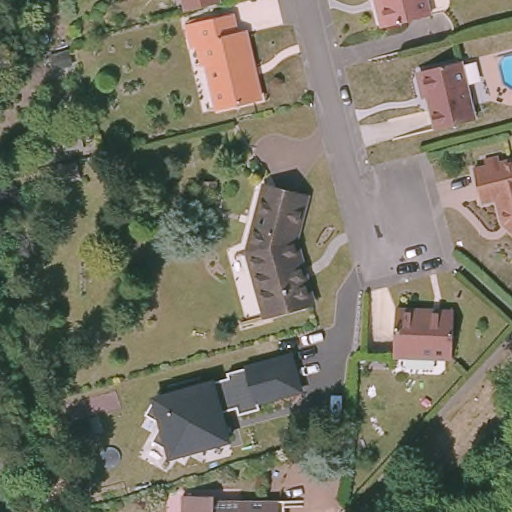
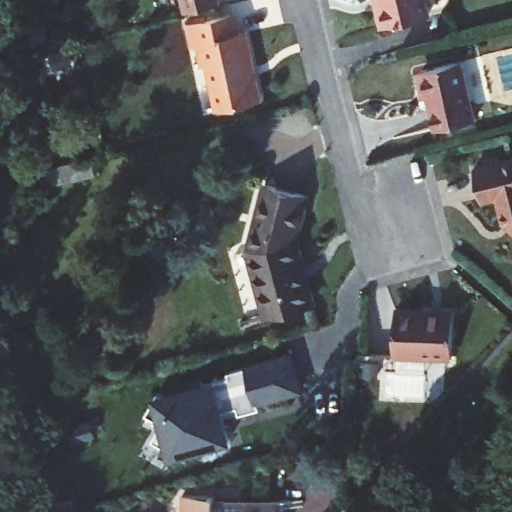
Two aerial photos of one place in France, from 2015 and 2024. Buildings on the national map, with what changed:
unchanged [(194,0),(228,0),(229,2),(196,10),(195,3),(194,0)]
unchanged [(388,23),(385,19),(380,16),(377,5),(376,0),(424,0),(427,13),(388,23)]
unchanged [(203,57),(198,40),(192,41),(187,22),(231,12),(236,31),(244,29),(260,94),(220,104),(207,56),(203,57)]
unchanged [(427,65),(465,56),(480,113),(441,123),(432,88),(426,85),(423,73),(427,68),(427,65)]
unchanged [(81,135),(85,147),(65,152),(62,140),(81,135)]
unchanged [(498,222),(493,199),(476,202),(469,170),(512,159),(512,236),(498,222)]
unchanged [(300,194),(291,238),(308,303),(260,315),(243,249),(258,183),(300,194)]
unchanged [(396,352),(394,309),(427,308),(452,307),(452,312),(453,349),(396,352)]
unchanged [(303,391),(245,407),(215,453),(196,444),(185,462),(155,441),(163,426),(145,416),(159,394),(171,400),(181,387),(293,356),(303,391)]
unchanged [(180,491),(211,490),(211,496),(275,494),(281,494),(282,512),(181,512),(180,491)]

